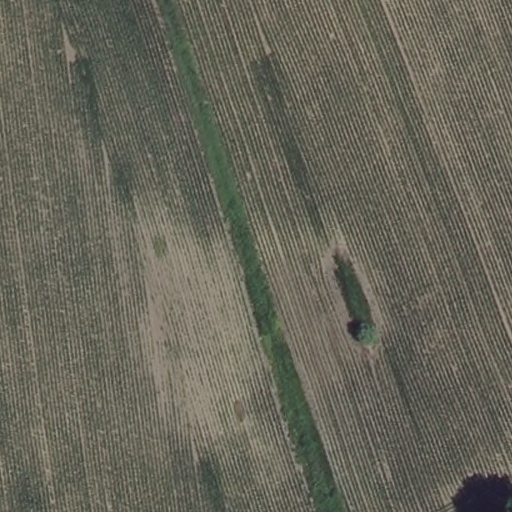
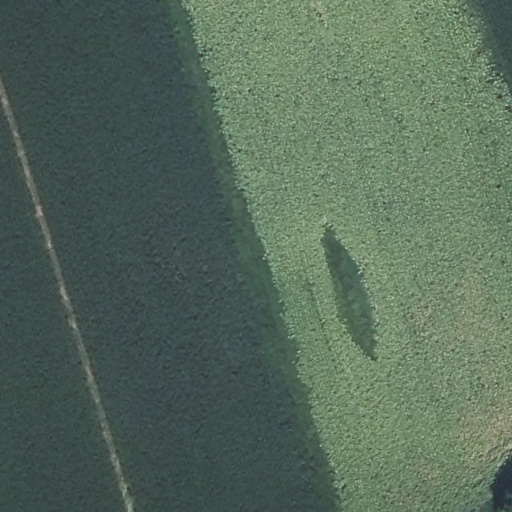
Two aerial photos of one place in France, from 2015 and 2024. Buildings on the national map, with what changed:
[]

